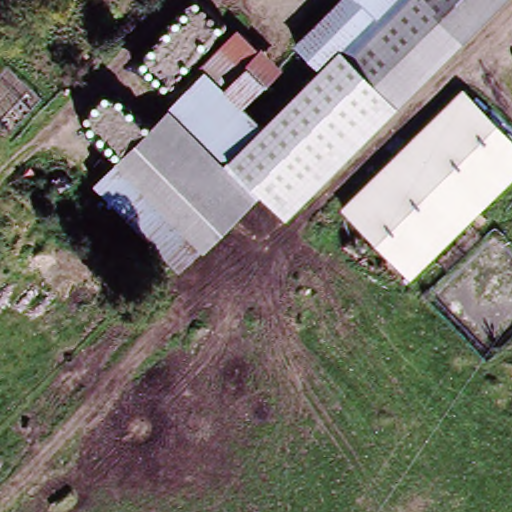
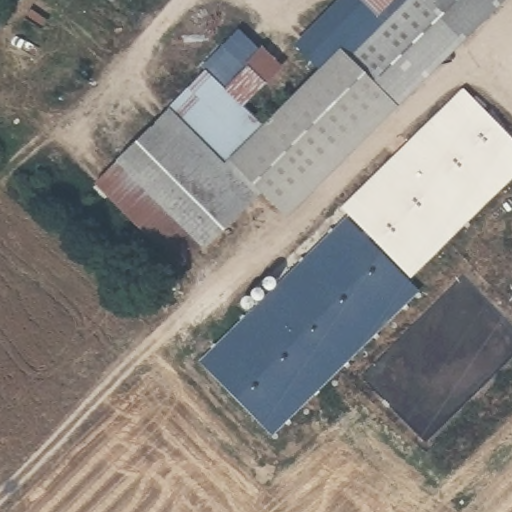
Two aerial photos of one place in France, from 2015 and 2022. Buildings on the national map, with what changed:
unchanged [(283,68),(244,107),(263,126),(318,70),(293,45),(336,0),(505,0),(285,219),(229,161),(225,165),(165,111),(237,29),(283,68)]
unchanged [(512,147),(512,170),(406,272),(340,205),(458,92),(512,147)]
unchanged [(228,167),(257,199),(180,276),(91,186),(164,110),(228,167)]
new [(406,272),(403,276),(418,292),(271,436),(198,362),(349,214),(406,272)]

